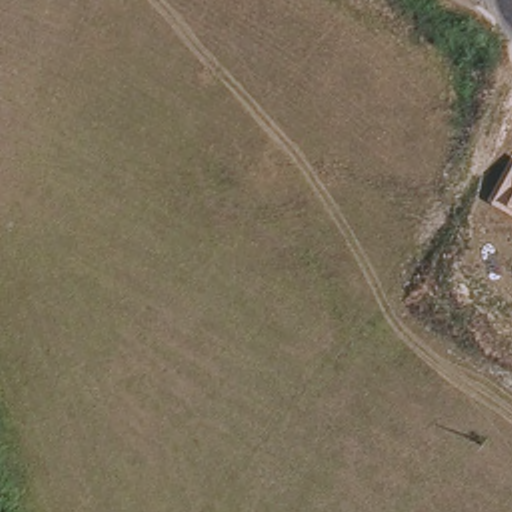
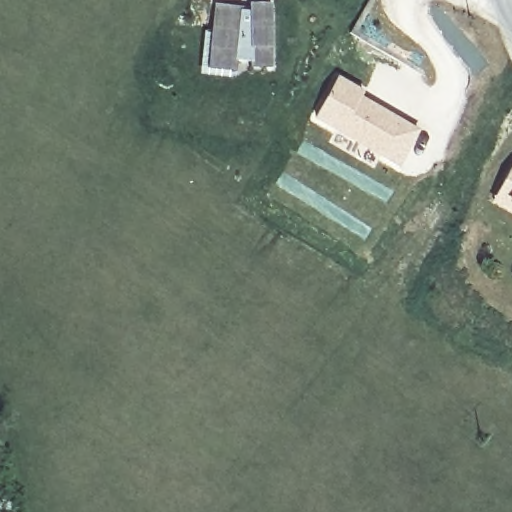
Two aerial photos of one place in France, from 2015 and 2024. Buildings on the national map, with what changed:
new [(215,5),(242,6),(242,10),(249,10),(249,4),(271,5),(271,67),(250,68),(250,62),(234,61),(234,72),(207,70),(215,5)]
new [(337,75),(362,90),(359,95),(417,127),(397,162),(315,116),(337,75)]
unchanged [(512,165),(512,211),(492,200),(512,165)]

